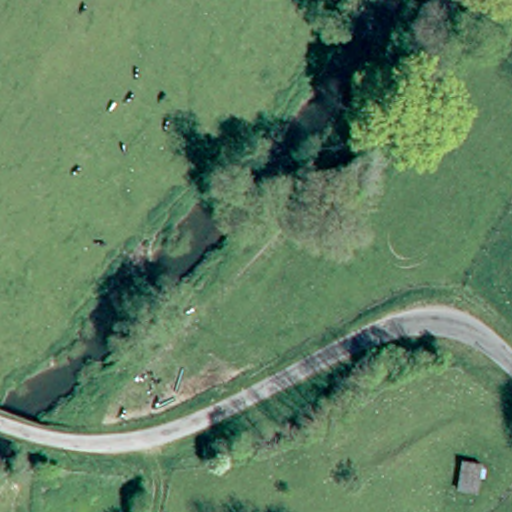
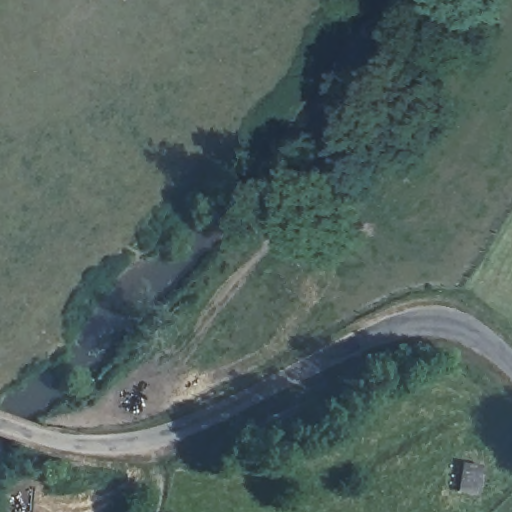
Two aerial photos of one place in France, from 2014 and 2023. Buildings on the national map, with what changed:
unchanged [(454,479),(454,458),(482,462),(481,487),(454,479)]

